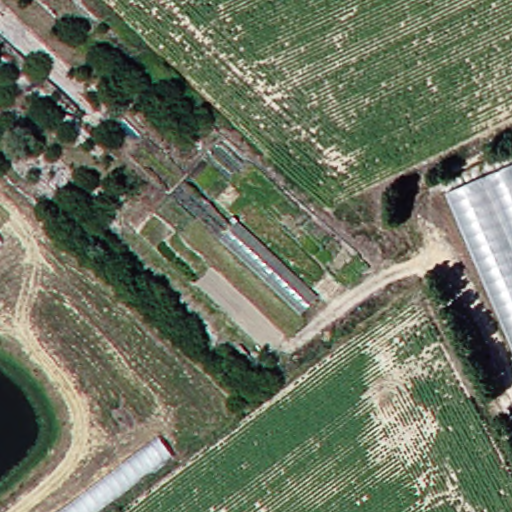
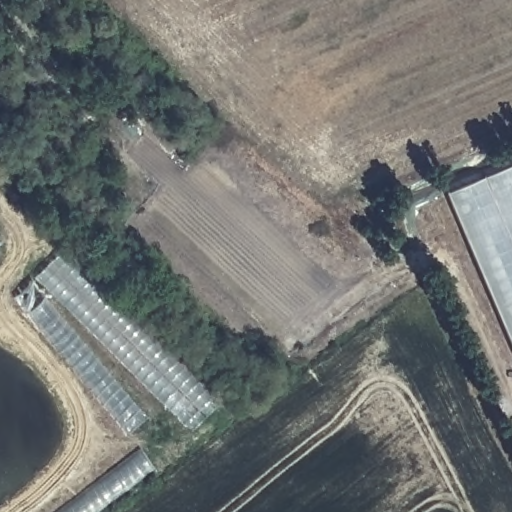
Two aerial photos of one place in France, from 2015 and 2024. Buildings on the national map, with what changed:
unchanged [(441,186),(512,157),(512,349),(441,186)]
new [(0,244),(0,240),(2,242),(0,244)]
new [(62,251),(220,405),(191,431),(165,402),(130,433),(15,297),(62,251)]
new [(100,512),(58,512),(157,438),(172,457),(100,512)]

